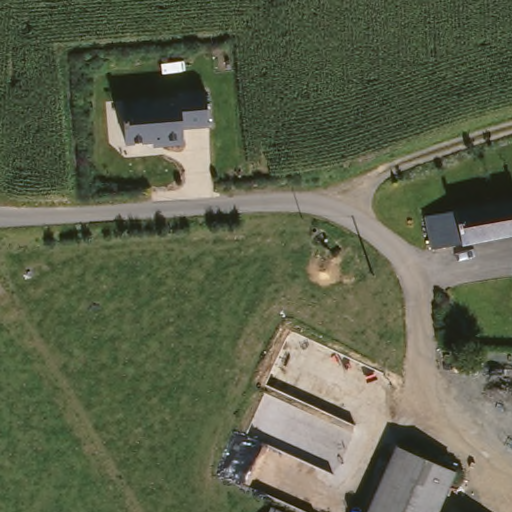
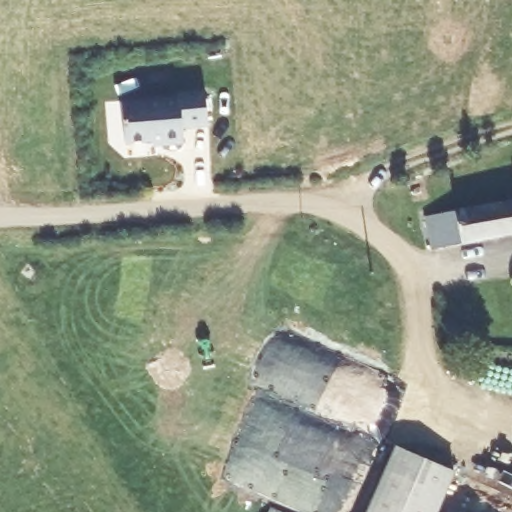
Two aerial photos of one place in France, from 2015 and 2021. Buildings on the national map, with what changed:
unchanged [(192,144),(193,151),(156,156),(155,146),(121,152),(119,106),(202,93),(209,139),(192,144)]
unchanged [(512,198),(512,234),(455,246),(441,248),(432,215),(448,212),(512,198)]
unchanged [(462,465),(441,512),(372,512),(403,438),(462,465)]

